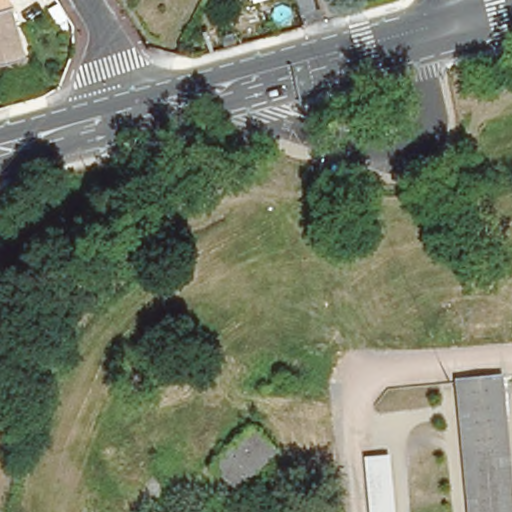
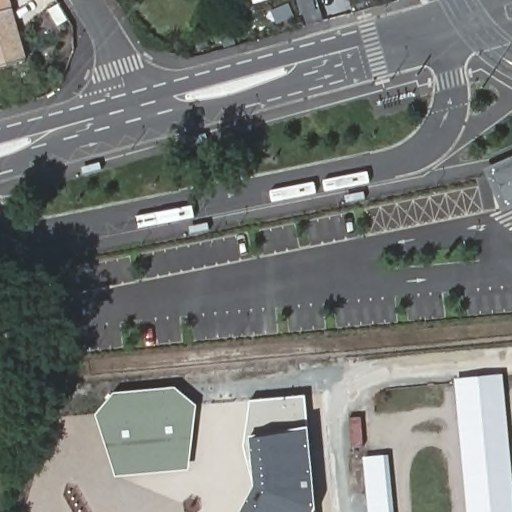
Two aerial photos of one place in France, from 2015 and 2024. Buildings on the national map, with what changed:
unchanged [(13,12),(27,62),(0,69),(0,0),(5,0),(9,14),(13,12)]
new [(512,201),(506,204),(492,172),(512,164),(512,201)]
unchanged [(498,380),(509,512),(474,512),(464,383),(498,380)]
new [(197,406),(190,468),(114,478),(97,414),(114,394),(176,388),(197,406)]
new [(244,446),(249,400),(306,395),(309,426),(317,508),(317,512),(240,512),(255,485),(244,446)]
demolished [(238,488),(219,468),(255,431),(274,452),(238,488)]
new [(369,512),(364,456),(389,454),(394,512),(369,512)]

